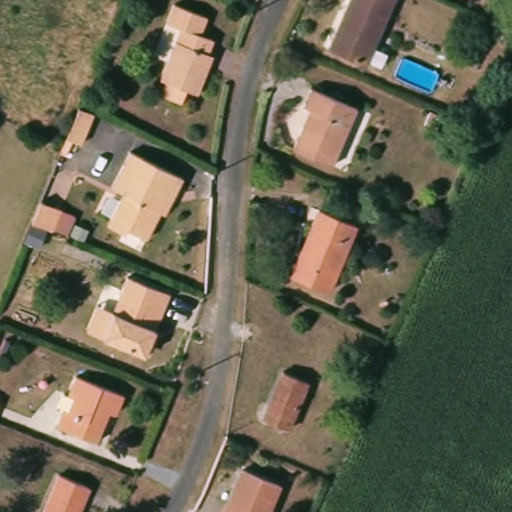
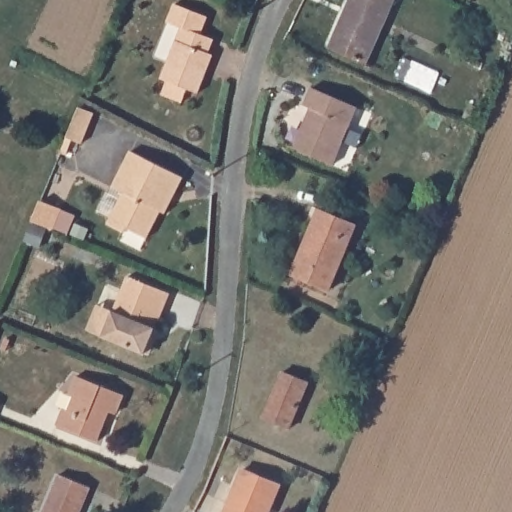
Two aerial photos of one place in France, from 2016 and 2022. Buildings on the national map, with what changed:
unchanged [(330,45),(349,0),(395,0),(368,62),(330,45)]
unchanged [(170,22),(177,5),(211,19),(205,35),(216,39),(202,72),(206,75),(200,92),(189,87),(183,101),(162,93),(167,79),(163,77),(183,27),(170,22)]
unchanged [(313,86),(360,106),(332,167),(293,150),(303,125),(311,106),(305,104),(313,86)]
unchanged [(90,100),(77,127),(64,120),(75,95),(90,100)]
unchanged [(165,206),(155,234),(134,225),(132,231),(115,225),(128,192),(115,186),(130,148),(185,170),(179,186),(170,208),(165,206)]
unchanged [(56,201),(49,220),(27,212),(35,193),(56,201)]
unchanged [(358,224),(332,289),(295,273),(321,209),(358,224)]
unchanged [(152,321),(115,306),(129,272),(171,288),(165,305),(157,323),(152,321)]
unchanged [(310,383),(290,430),(265,420),(284,371),(310,383)]
unchanged [(67,408),(72,396),(67,394),(75,375),(128,396),(120,415),(109,411),(104,424),(110,426),(104,443),(55,424),(62,407),(67,408)]
unchanged [(229,510),(226,509),(247,460),(286,476),(271,512),(228,512),(229,510)]
unchanged [(95,481),(82,512),(47,512),(65,469),(95,481)]

